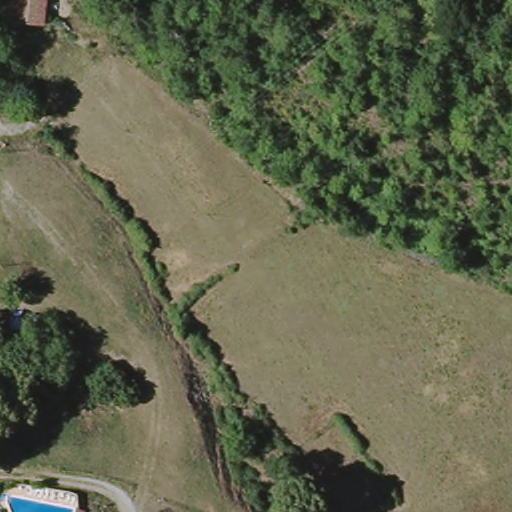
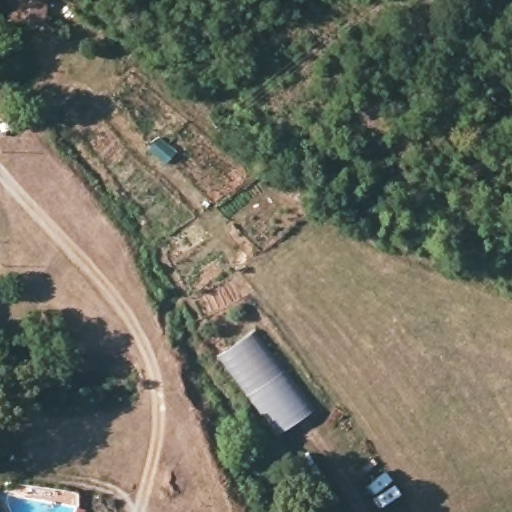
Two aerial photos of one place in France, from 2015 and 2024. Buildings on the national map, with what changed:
unchanged [(48,25),(9,21),(11,0),(50,0),(48,25)]
new [(275,437),(216,357),(252,332),(311,412),(275,437)]

